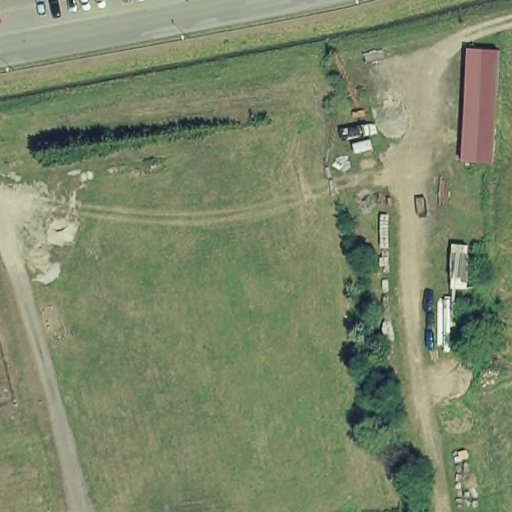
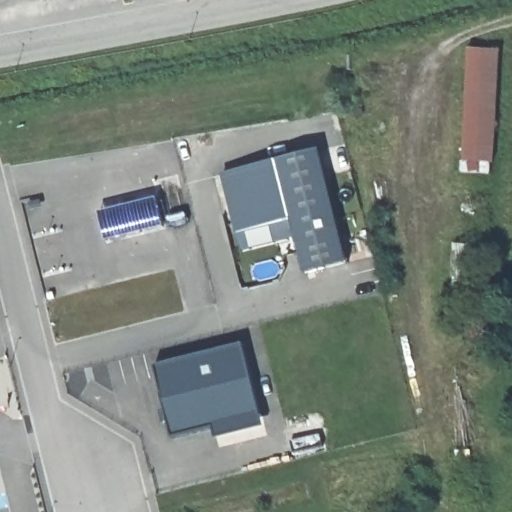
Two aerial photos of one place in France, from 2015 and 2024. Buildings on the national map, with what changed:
unchanged [(494,165),(459,164),(466,47),(501,47),(494,165)]
new [(349,261),(306,272),(293,219),(287,194),(275,196),(268,165),(280,162),(322,150),(349,261)]
new [(224,173),(268,165),(275,196),(287,194),(293,219),(240,232),(224,173)]
new [(266,427),(216,438),(213,428),(174,439),(157,367),(243,346),(266,427)]

